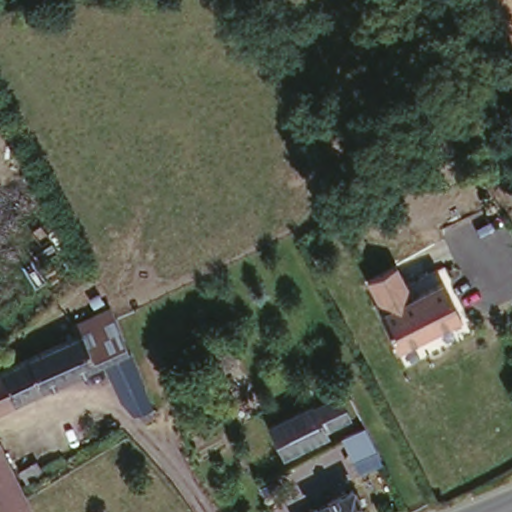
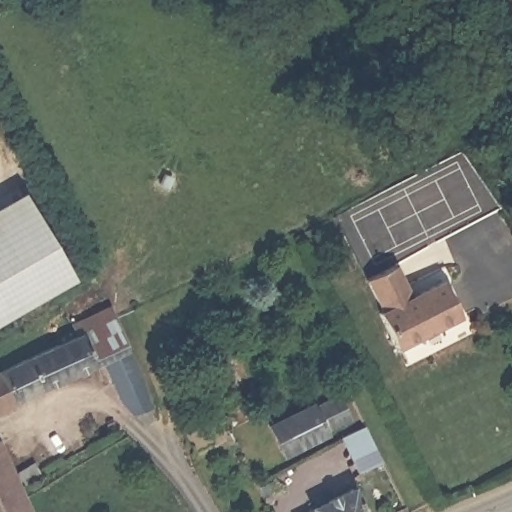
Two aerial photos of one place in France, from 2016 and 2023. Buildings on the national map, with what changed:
new [(27,188),(80,275),(0,323),(0,204),(27,188)]
unchanged [(441,278),(460,316),(396,348),(377,310),(381,308),(366,277),(395,262),(404,281),(411,293),(441,278)]
unchanged [(103,363),(0,416),(0,377),(20,364),(72,338),(68,327),(107,307),(112,318),(155,420),(146,426),(142,424),(122,402),(103,363)]
unchanged [(338,401),(349,423),(325,435),(327,439),(285,459),(272,432),(313,410),(314,413),(338,401)]
unchanged [(348,463),(336,434),(361,421),(376,451),(348,463)]
unchanged [(20,494),(28,512),(0,512),(0,447),(20,494)]
unchanged [(20,481),(37,471),(43,481),(26,491),(20,481)]
unchanged [(318,510),(317,508),(356,489),(368,512),(315,512),(318,510)]

